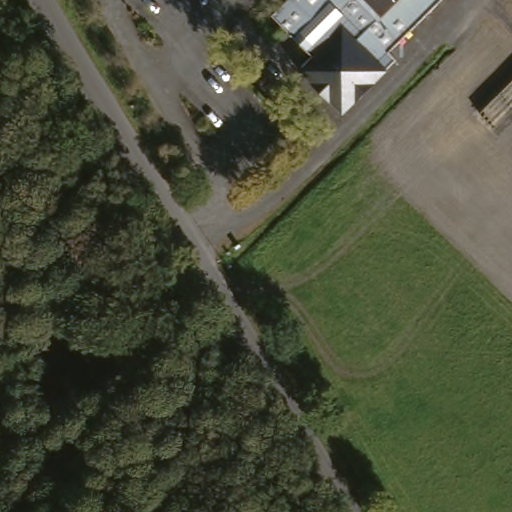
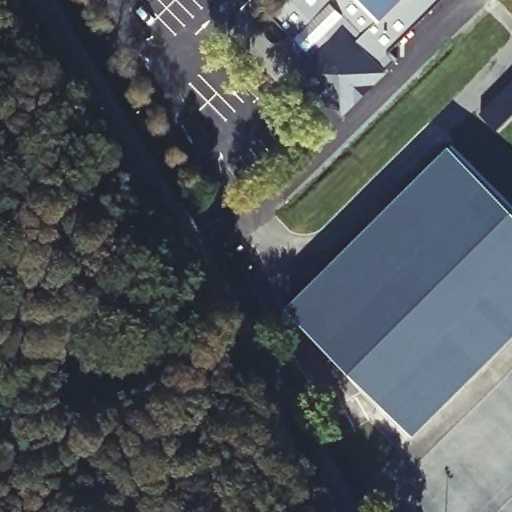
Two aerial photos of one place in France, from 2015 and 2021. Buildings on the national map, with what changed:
unchanged [(390,49),(397,55),(386,66),(392,72),(348,117),(300,70),(313,56),(273,18),(291,0),(439,0),(390,49)]
new [(512,350),(432,436),(303,318),(457,152),(512,204),(512,350)]

